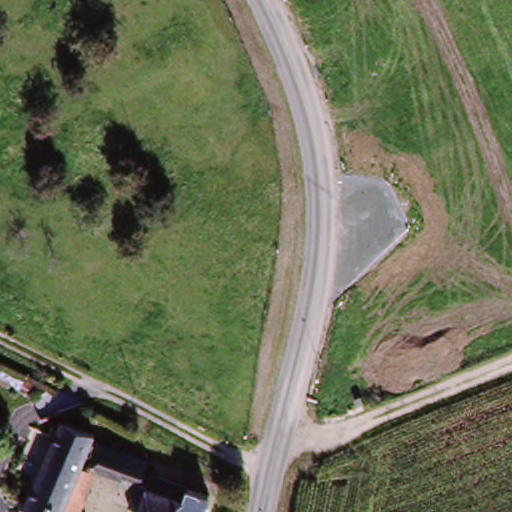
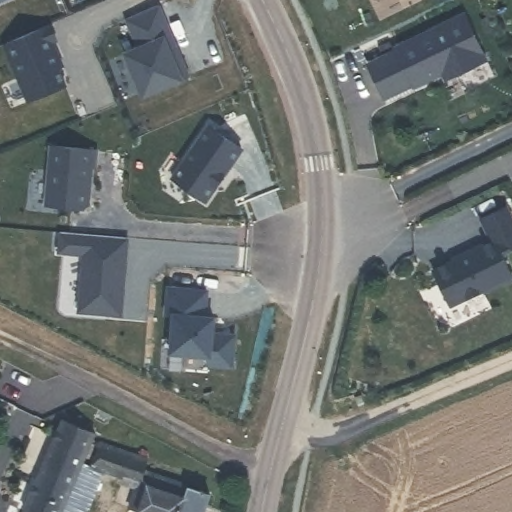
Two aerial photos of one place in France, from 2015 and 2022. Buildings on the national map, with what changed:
new [(0,2),(0,0),(4,0),(0,2)]
new [(192,75),(182,80),(142,97),(122,52),(134,47),(122,18),(158,2),(192,75)]
new [(397,53),(395,50),(463,15),(487,60),(447,80),(443,74),(415,89),(413,86),(386,100),(369,67),(397,53)]
new [(50,24),(57,42),(54,43),(65,68),(60,70),(67,87),(28,103),(1,45),(50,24)]
new [(205,130),(240,151),(222,179),(221,179),(215,188),(217,189),(207,206),(172,184),(205,130)]
new [(98,149),(97,167),(93,167),(90,203),(83,209),(43,206),(47,146),(98,149)]
new [(462,257),(461,254),(479,245),(480,247),(492,241),(512,279),(495,287),(495,285),(449,307),(432,272),(462,257)]
new [(127,254),(121,315),(75,312),(81,251),(127,254)]
new [(210,289),(205,314),(215,315),(214,330),(237,333),(233,368),(205,366),(205,357),(167,354),(172,313),(162,315),(165,285),(210,289)]
unchanged [(81,431),(79,436),(70,461),(89,467),(74,512),(18,512),(52,420),(81,431)]
unchanged [(122,478),(89,467),(70,461),(79,436),(95,441),(130,451),(122,478)]
unchanged [(207,512),(142,512),(151,477),(183,485),(180,495),(195,498),(197,489),(212,493),(207,512)]

